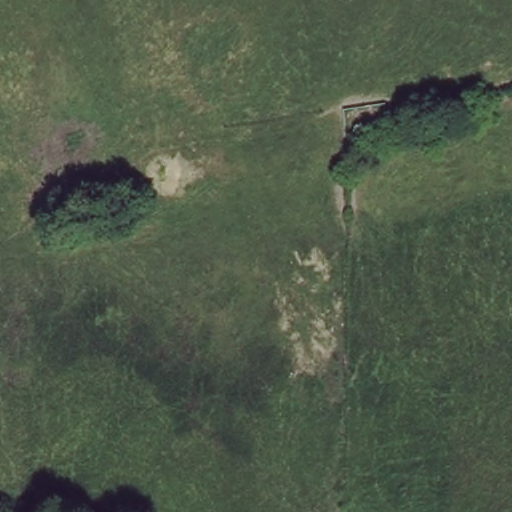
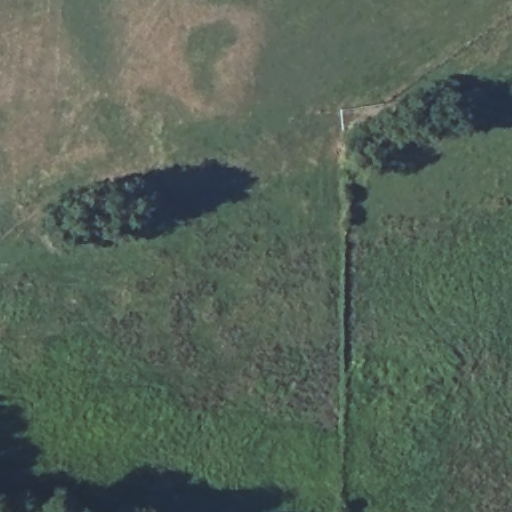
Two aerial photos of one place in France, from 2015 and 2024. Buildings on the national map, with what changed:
unchanged [(87,220),(127,209),(132,228),(93,240),(87,220)]

